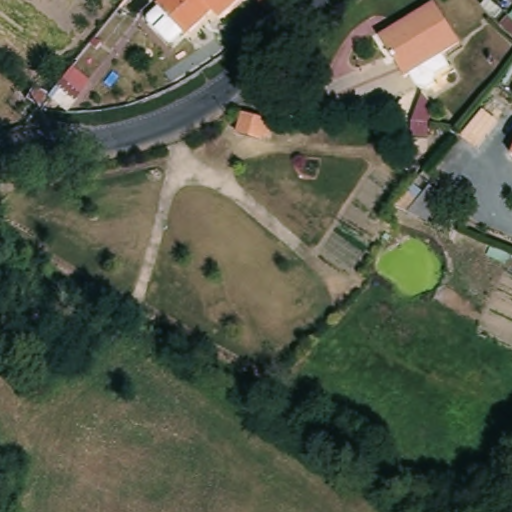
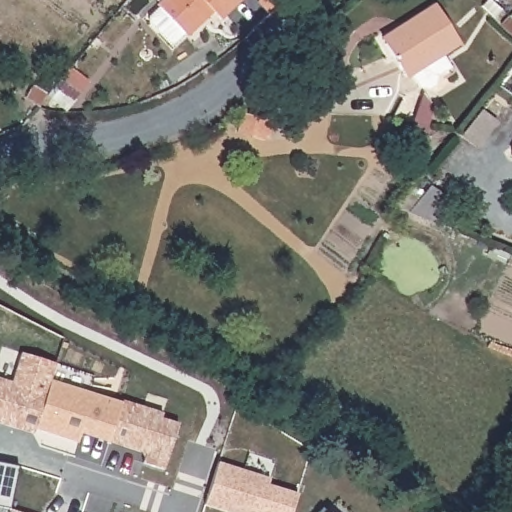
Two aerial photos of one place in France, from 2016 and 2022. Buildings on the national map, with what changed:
unchanged [(239,0),(221,18),(214,11),(188,37),(183,32),(173,42),(168,42),(150,25),(150,20),(160,10),(157,7),(164,0),(239,0)]
unchanged [(399,23),(431,4),(455,41),(402,75),(380,41),(402,28),(399,23)]
new [(262,102),(290,111),(286,125),(281,124),(279,129),(255,121),(262,102)]
unchanged [(509,153),(512,147),(512,155),(509,153)]
new [(141,463),(144,454),(109,443),(79,433),(77,443),(34,430),(49,380),(122,402),(163,415),(161,418),(178,423),(164,469),(141,463)]
new [(206,504),(219,462),(271,478),(269,484),(299,493),(293,512),(232,512),(206,504)]
new [(323,507),(329,512),(319,512),(323,507)]
new [(10,510),(18,512),(9,512),(10,510)]

